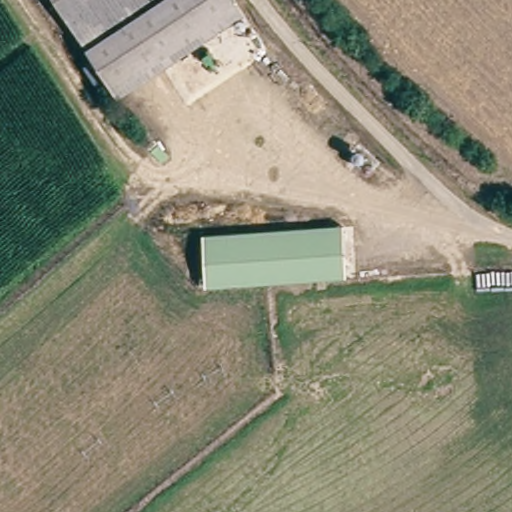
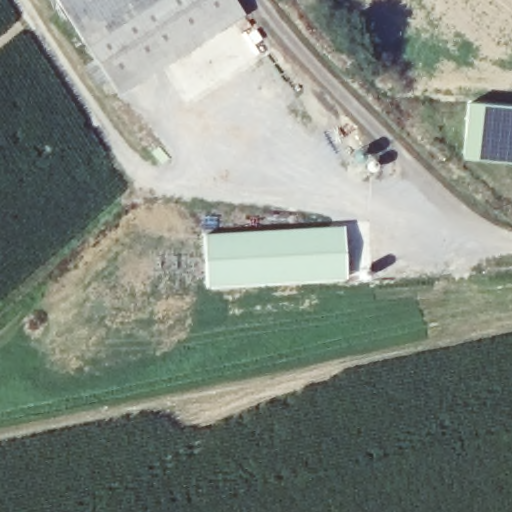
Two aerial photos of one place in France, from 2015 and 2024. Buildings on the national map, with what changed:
unchanged [(182,46),(121,88),(97,51),(61,0),(244,0),(246,1),(182,46)]
new [(467,101),(512,105),(512,164),(462,160),(467,101)]
unchanged [(201,235),(341,229),(342,277),(202,282),(201,235)]

